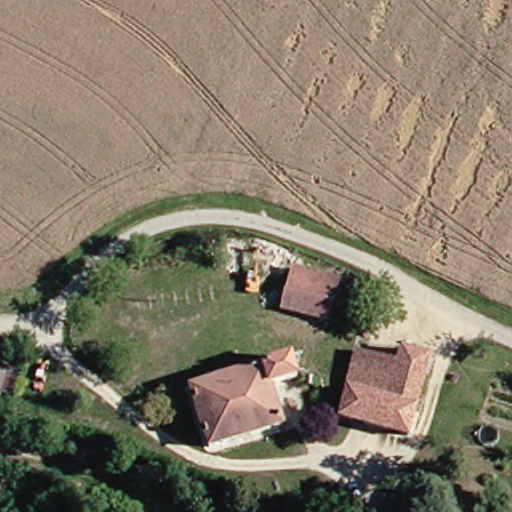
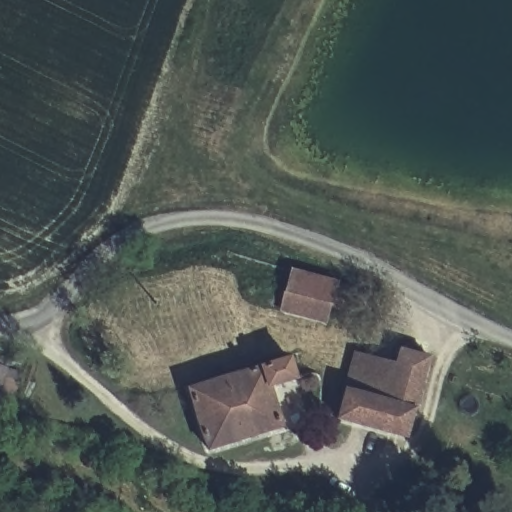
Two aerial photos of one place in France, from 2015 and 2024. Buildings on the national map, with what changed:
unchanged [(277,316),(281,297),(287,271),(352,286),(349,302),(341,301),(338,309),(322,307),(318,322),(277,316)]
unchanged [(393,362),(397,347),(428,356),(405,439),(336,418),(345,388),(384,398),(393,362)]
unchanged [(203,452),(186,391),(258,370),(255,351),(287,350),(296,382),(270,390),(281,429),(203,452)]
unchanged [(356,353),(393,362),(384,398),(345,388),(356,353)]
unchanged [(0,368),(17,372),(12,387),(10,397),(0,394),(0,368)]

